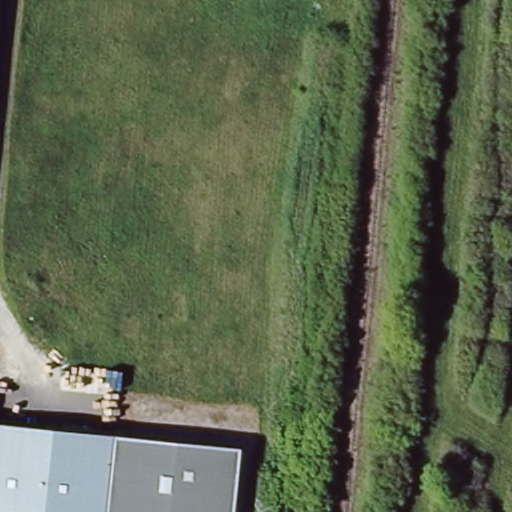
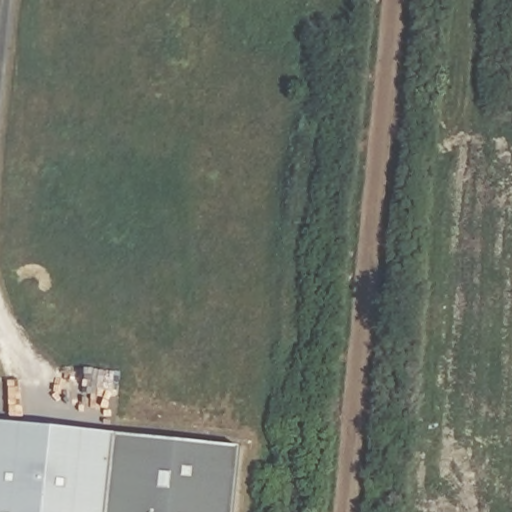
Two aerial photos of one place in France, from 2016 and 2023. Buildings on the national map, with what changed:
unchanged [(122,426),(121,431),(120,439),(0,428),(0,418),(122,426)]
unchanged [(121,431),(122,426),(245,446),(239,512),(114,512),(120,439),(121,431)]
unchanged [(120,439),(114,512),(0,512),(0,428),(120,439)]

